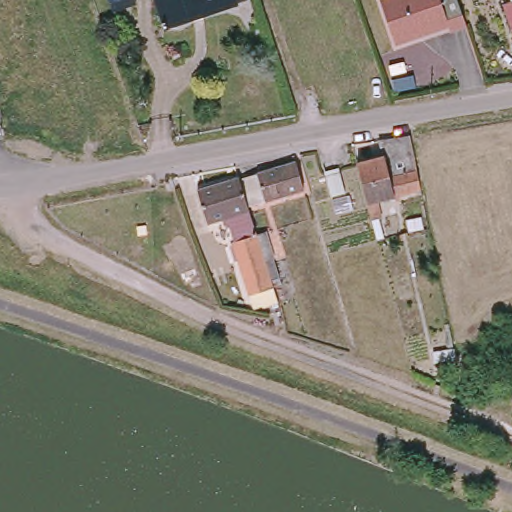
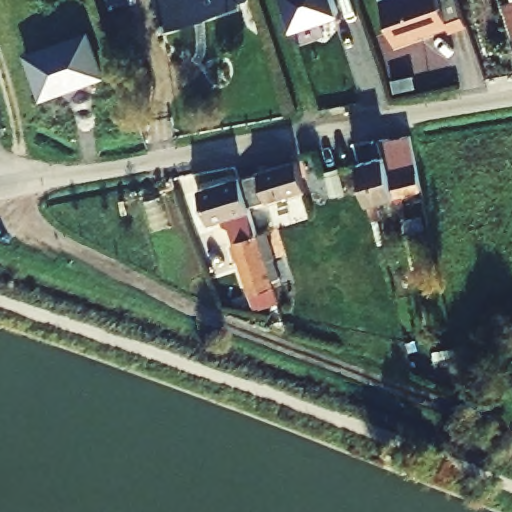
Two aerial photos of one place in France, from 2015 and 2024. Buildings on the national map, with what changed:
unchanged [(112,6),(110,0),(131,0),(112,6)]
unchanged [(235,11),(165,32),(155,0),(232,0),(235,11)]
new [(339,11),(312,21),(312,23),(292,29),(283,0),(335,0),(339,11)]
unchanged [(472,40),(457,45),(454,38),(402,55),(384,0),(458,0),(472,40)]
unchanged [(512,28),(502,1),(507,0),(512,0),(512,28)]
new [(86,32),(102,75),(63,88),(63,87),(40,96),(25,54),(86,32)]
unchanged [(383,156),(379,140),(410,135),(422,190),(377,201),(381,217),(378,218),(383,237),(377,239),(357,162),(383,156)]
unchanged [(296,161),(305,189),(249,206),(240,179),(296,161)]
unchanged [(240,177),(240,179),(249,206),(250,211),(210,223),(200,190),(240,177)]
unchanged [(275,228),(283,256),(270,260),(272,267),(268,268),(275,287),(251,295),(235,242),(257,234),(275,228)]

